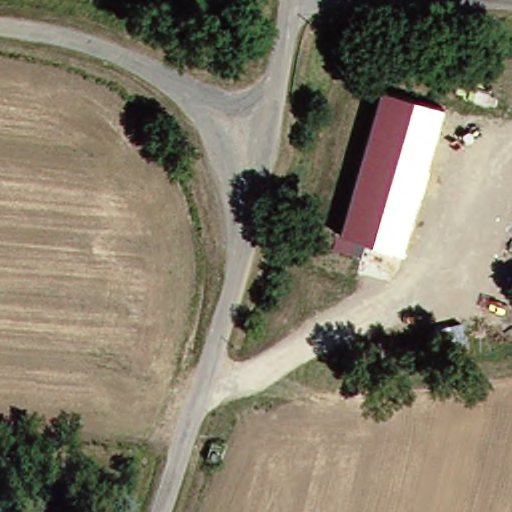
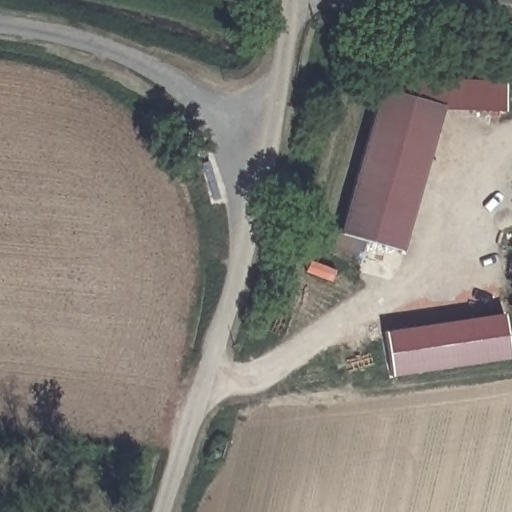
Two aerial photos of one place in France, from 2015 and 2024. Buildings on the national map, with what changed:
new [(503,108),(446,107),(382,89),(383,81),(506,81),(503,108)]
unchanged [(404,252),(341,234),(382,89),(446,107),(404,252)]
new [(510,358),(391,376),(383,332),(503,314),(510,358)]

